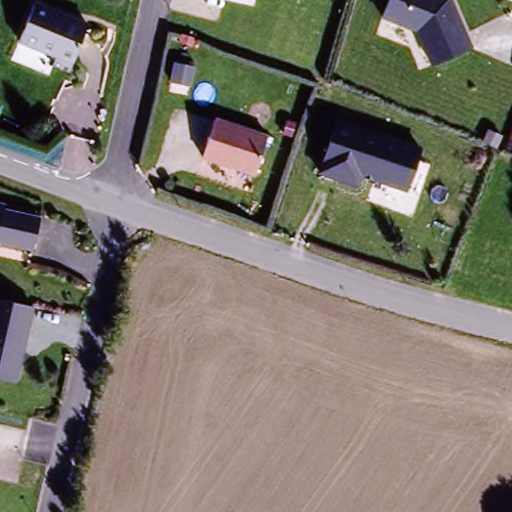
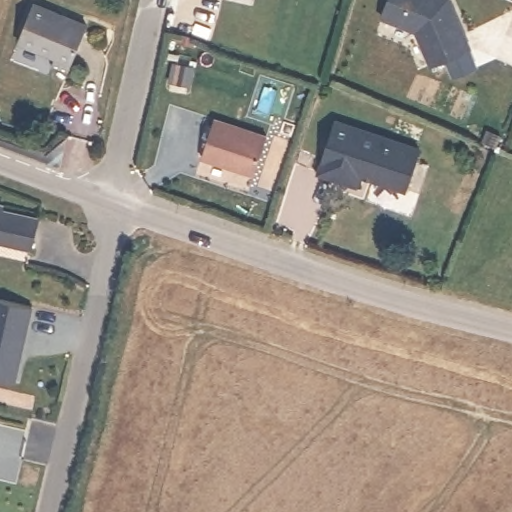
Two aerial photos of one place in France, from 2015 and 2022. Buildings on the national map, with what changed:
unchanged [(474,49),(438,62),(418,25),(387,15),(393,0),(452,0),(474,49)]
unchanged [(56,61),(19,46),(35,6),(87,27),(69,73),(53,67),(56,61)]
unchanged [(251,173),(199,157),(212,118),(263,134),(251,173)]
unchanged [(425,151),(409,188),(366,174),(360,185),(326,171),(342,121),(425,151)]
unchanged [(36,250),(0,242),(0,201),(44,211),(36,250)]
unchanged [(31,307),(16,382),(0,378),(0,299),(31,307)]

